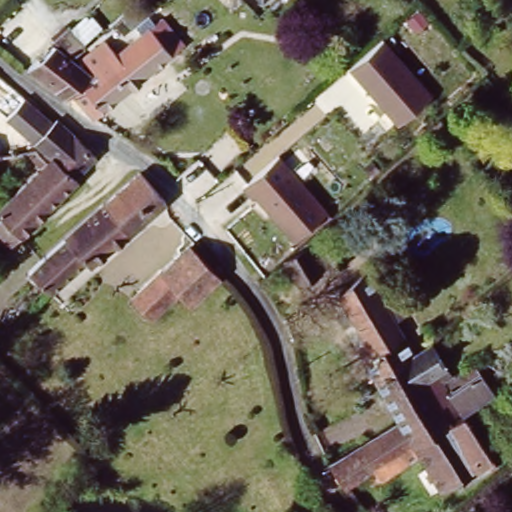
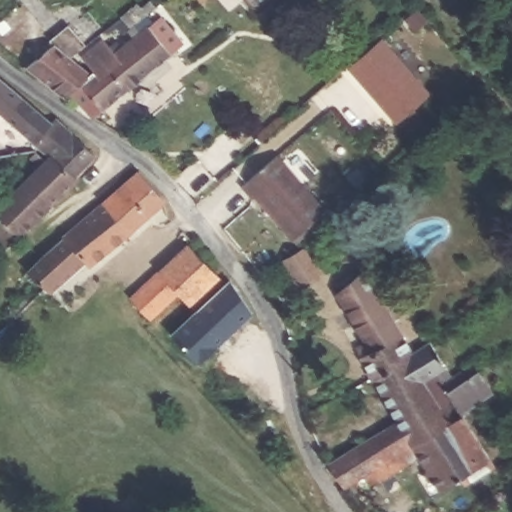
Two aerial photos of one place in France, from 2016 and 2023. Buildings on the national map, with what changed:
unchanged [(94,78),(100,73),(87,58),(110,40),(120,54),(163,19),(187,45),(100,116),(76,94),(94,78)]
unchanged [(357,65),(390,36),(436,91),(402,120),(357,65)]
unchanged [(70,99),(30,65),(55,45),(72,59),(94,78),(76,94),(70,99)]
unchanged [(50,159),(17,129),(38,107),(60,123),(62,122),(101,159),(80,181),(78,180),(50,159)]
unchanged [(0,154),(0,149),(5,153),(0,154)]
unchanged [(249,184),(287,153),(335,211),(299,240),(249,184)]
unchanged [(0,227),(7,220),(0,212),(41,169),(32,160),(37,155),(47,162),(50,159),(78,180),(80,181),(25,237),(8,255),(0,247),(0,227)]
unchanged [(32,266),(41,258),(98,207),(138,172),(163,201),(76,277),(52,298),(45,290),(27,270),(32,266)]
unchanged [(144,327),(132,314),(140,306),(134,300),(196,244),(222,275),(189,303),(182,295),(144,327)]
new [(302,246),(318,271),(296,285),(280,260),(302,246)]
unchanged [(374,373),(359,346),(365,341),(342,304),(337,307),(331,298),(365,267),(415,348),(374,373)]
new [(247,302),(253,313),(225,338),(224,337),(218,342),(220,344),(199,363),(172,334),(230,280),(247,302)]
unchanged [(477,461),(479,465),(441,486),(422,458),(382,476),(380,470),(345,488),(326,462),(360,442),(400,420),(374,373),(415,348),(430,338),(450,367),(441,373),(447,383),(450,388),(454,386),(485,368),(497,391),(465,409),(462,411),(487,455),(477,461)]

